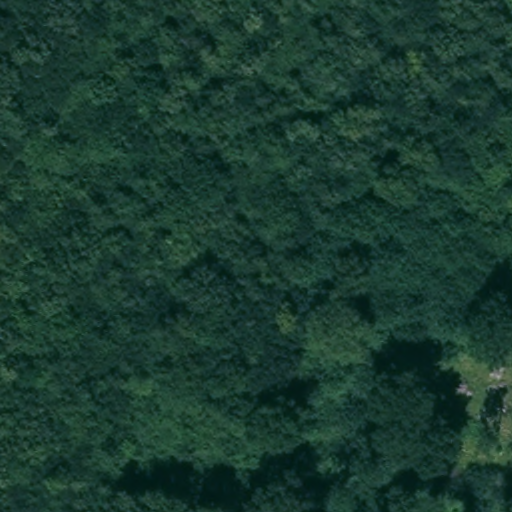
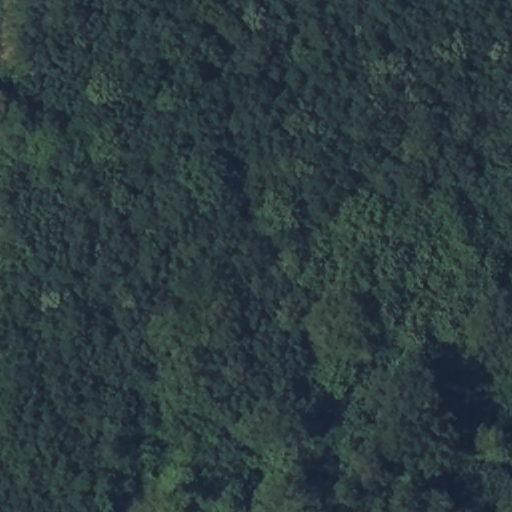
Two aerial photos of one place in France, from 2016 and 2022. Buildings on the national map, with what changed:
[]

